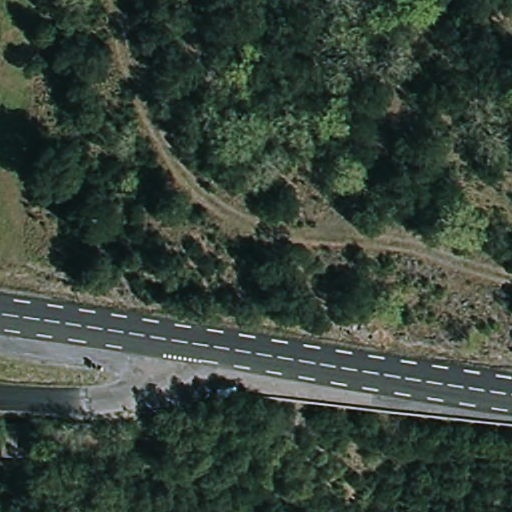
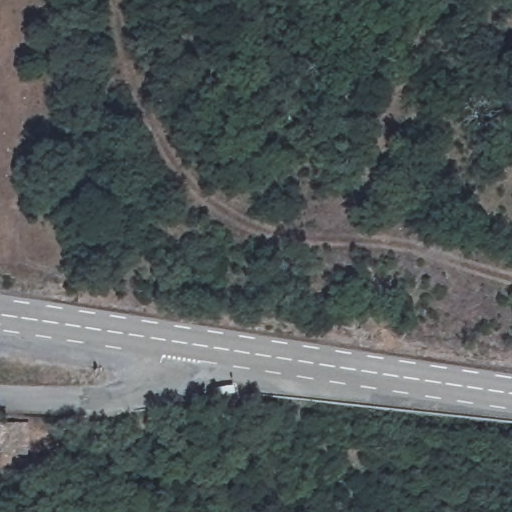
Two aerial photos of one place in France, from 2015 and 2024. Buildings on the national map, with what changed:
unchanged [(2,453),(0,428),(0,420),(33,416),(37,449),(2,453)]

